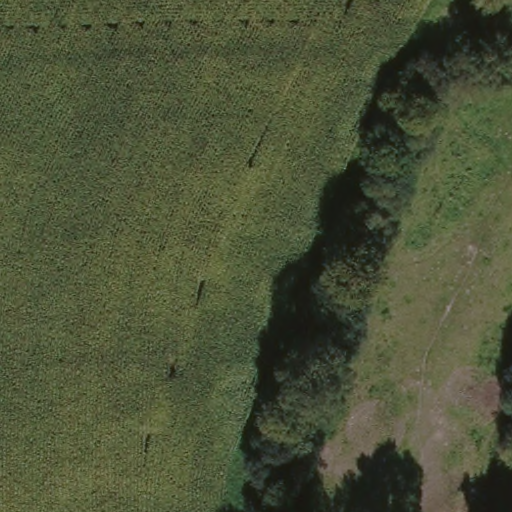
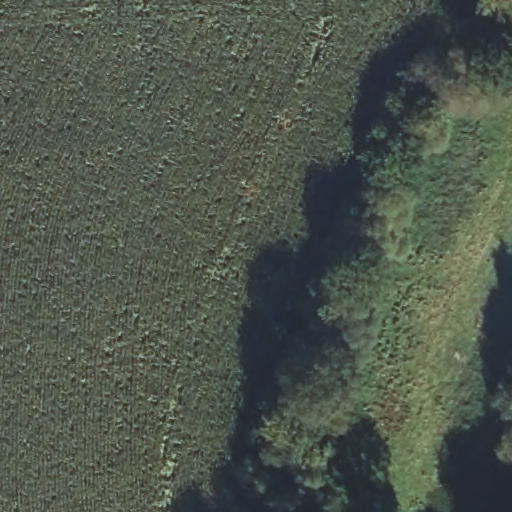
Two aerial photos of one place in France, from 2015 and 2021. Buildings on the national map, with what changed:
[]

